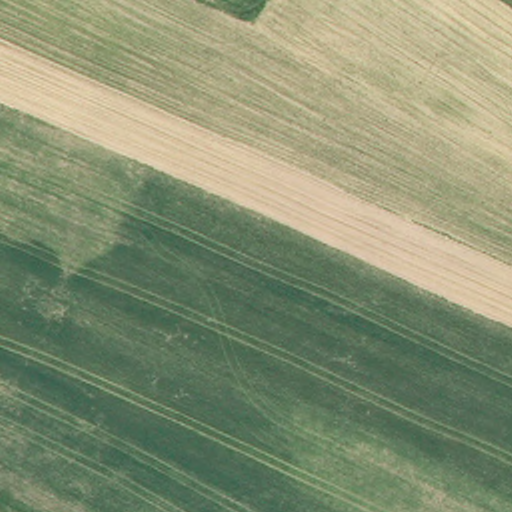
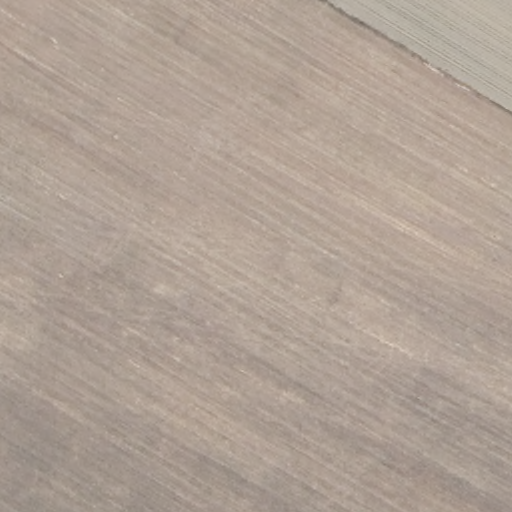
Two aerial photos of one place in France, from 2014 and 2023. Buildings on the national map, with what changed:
[]

